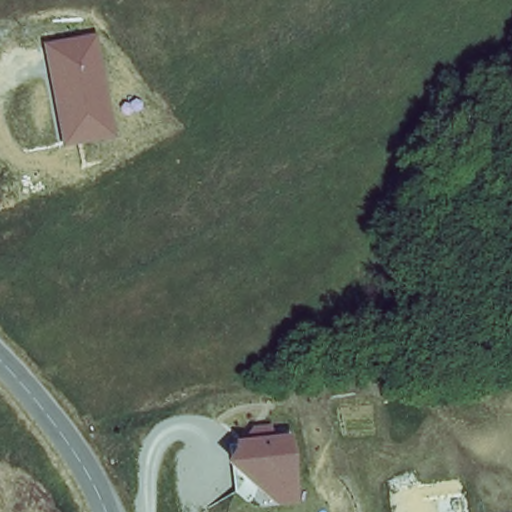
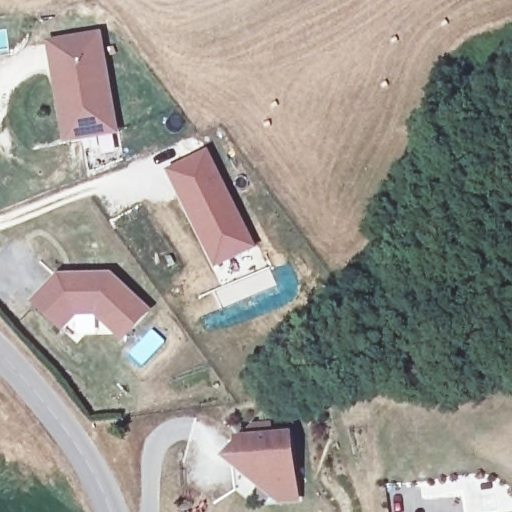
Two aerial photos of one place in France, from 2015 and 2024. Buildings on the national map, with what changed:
unchanged [(100,31),(120,136),(65,146),(47,41),(100,31)]
new [(254,247),(217,265),(170,172),(206,154),(254,247)]
new [(122,343),(96,318),(79,317),(65,334),(32,305),(58,275),(113,273),(153,311),(122,343)]
unchanged [(285,433),(288,479),(231,485),(230,438),(285,433)]

